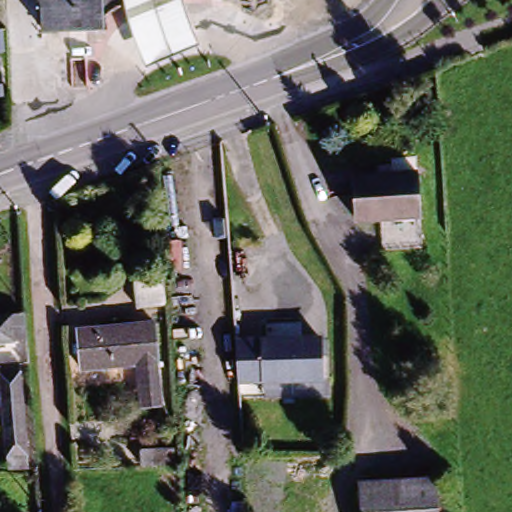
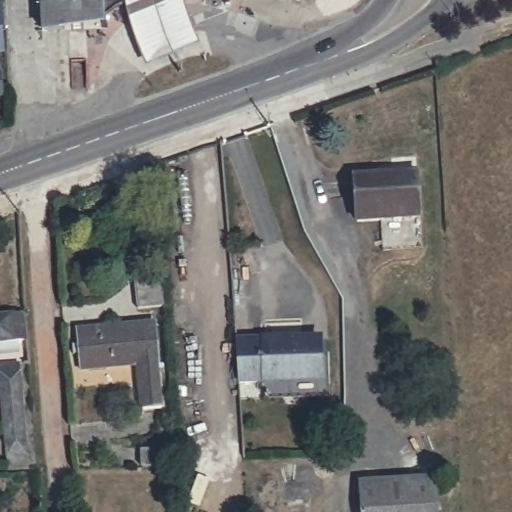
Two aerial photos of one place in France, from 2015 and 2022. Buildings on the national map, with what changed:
unchanged [(110,15),(106,19),(107,28),(44,32),(42,0),(134,0),(126,4),(124,5),(117,10),(110,15)]
unchanged [(192,32),(199,47),(146,69),(136,46),(130,27),(124,5),(126,4),(134,0),(184,0),(187,16),(192,32)]
unchanged [(7,48),(0,49),(0,30),(5,30),(7,48)]
unchanged [(0,54),(5,96),(0,96),(0,54)]
unchanged [(361,216),(356,172),(418,167),(421,212),(361,216)]
unchanged [(165,272),(167,297),(140,300),(137,275),(165,272)]
unchanged [(32,332),(0,335),(0,308),(29,305),(32,332)]
unchanged [(149,365),(92,370),(89,330),(166,323),(168,363),(171,410),(151,411),(149,365)]
unchanged [(271,382),(269,340),(327,337),(329,379),(271,382)]
unchanged [(21,375),(28,480),(8,481),(0,376),(21,375)]
unchanged [(172,465),(139,467),(137,451),(172,448),(172,465)]
unchanged [(442,475),(444,512),(368,512),(367,480),(442,475)]

